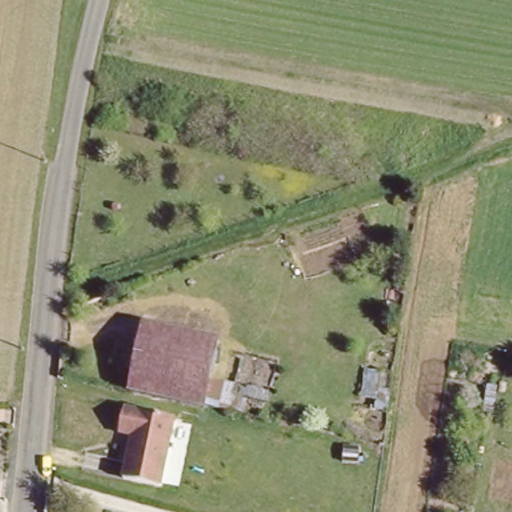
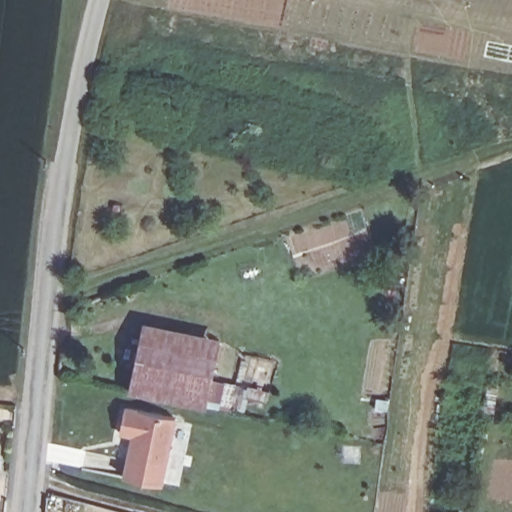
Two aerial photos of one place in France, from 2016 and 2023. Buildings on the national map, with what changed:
unchanged [(143,322),(220,338),(206,405),(130,390),(143,322)]
unchanged [(127,404),(177,414),(164,481),(126,475),(135,431),(122,430),(127,404)]

